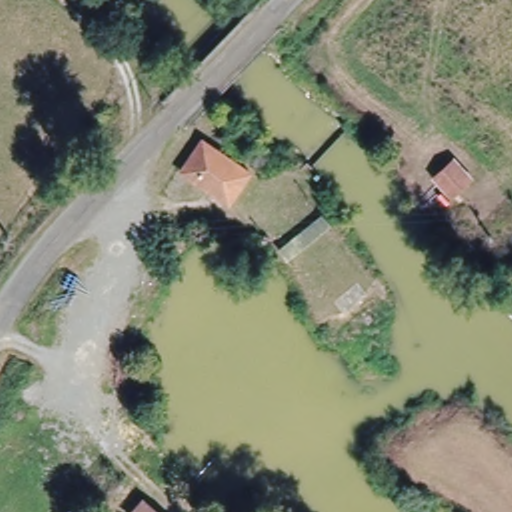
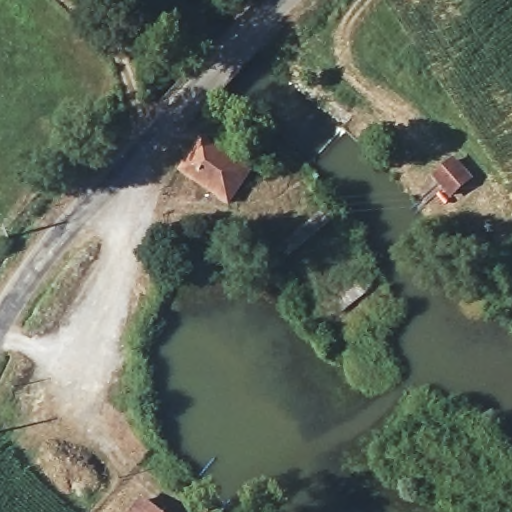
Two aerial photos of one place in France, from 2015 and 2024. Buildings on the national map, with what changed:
unchanged [(230,207),(175,173),(198,138),(252,172),(230,207)]
unchanged [(427,178),(449,157),(474,179),(450,199),(427,178)]
unchanged [(274,244),(319,213),(330,227),(285,259),(274,244)]
unchanged [(138,497),(160,512),(125,512),(138,497)]

